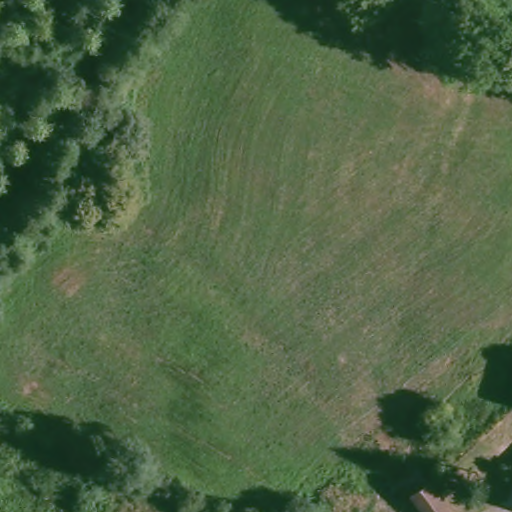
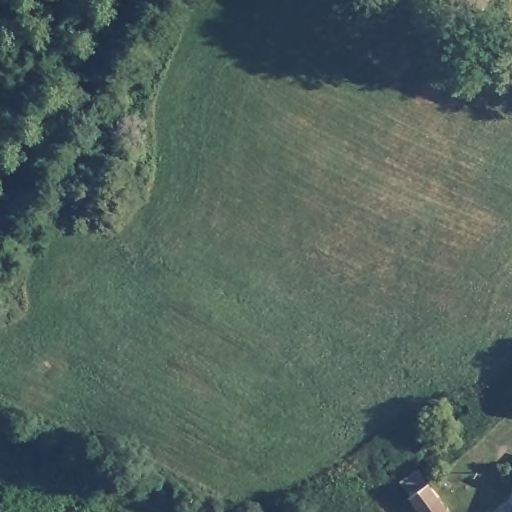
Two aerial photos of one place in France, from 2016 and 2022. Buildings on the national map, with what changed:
unchanged [(417,470),(449,512),(422,512),(400,483),(417,470)]

